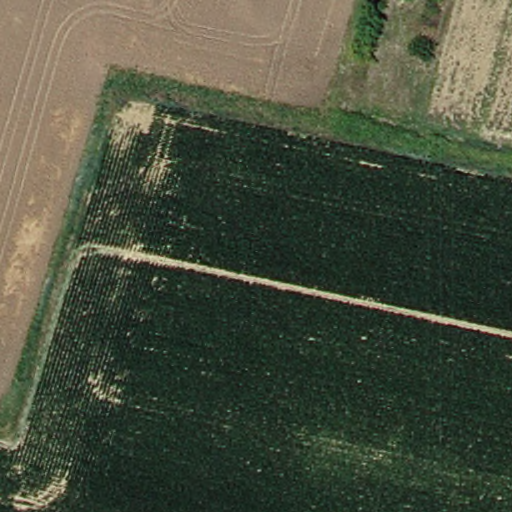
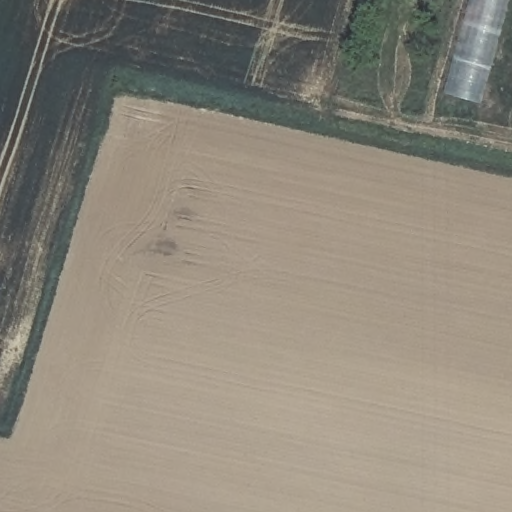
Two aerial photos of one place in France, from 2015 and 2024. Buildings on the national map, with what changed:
new [(470,0),(509,0),(480,104),(444,94),(470,0)]

